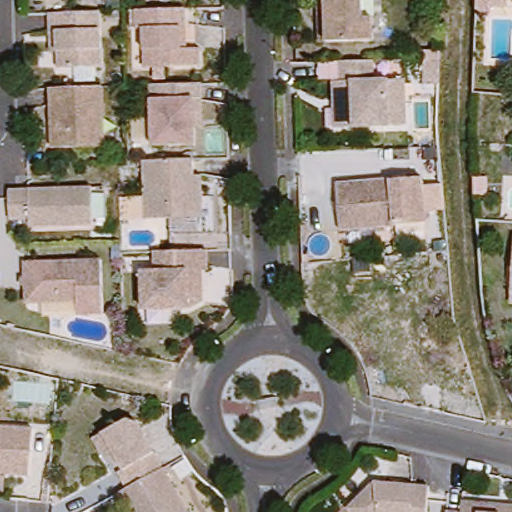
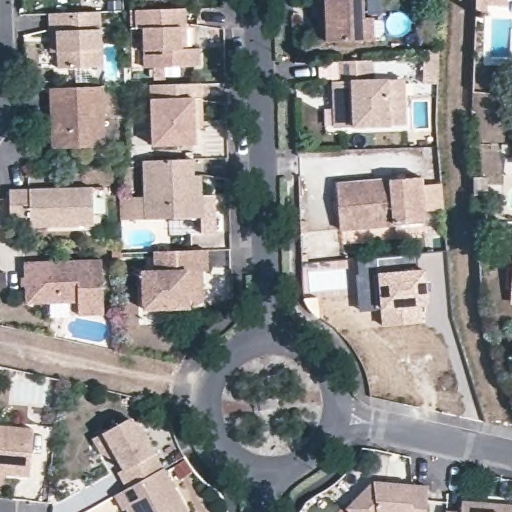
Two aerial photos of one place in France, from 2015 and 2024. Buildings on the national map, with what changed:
unchanged [(319,0),(364,0),(365,17),(389,16),(389,38),(331,41),(321,42),(319,0)]
unchanged [(509,2),(489,1),(489,9),(478,8),(478,0),(509,0),(509,2)]
unchanged [(51,29),(50,9),(108,7),(111,63),(61,66),(61,49),(52,50),(51,29)]
unchanged [(140,27),(148,26),(146,10),(193,8),(194,26),(195,47),(208,47),(209,64),(154,66),(141,67),(140,27)]
unchanged [(422,76),(421,50),(421,42),(437,41),(437,49),(437,76),(422,76)]
unchanged [(319,82),(318,64),(336,64),(371,62),(373,83),(399,82),(401,126),(341,130),(333,130),(331,81),(319,82)]
unchanged [(198,125),(199,141),(156,143),(154,84),(205,82),(206,110),(206,125),(198,125)]
unchanged [(65,125),(64,93),(115,90),(118,150),(75,151),(66,152),(65,125)]
unchanged [(198,158),(199,176),(206,176),(206,188),(208,215),(153,218),(150,161),(198,158)]
unchanged [(427,170),(433,215),(349,225),(343,181),(427,170)]
unchanged [(38,213),(16,213),(15,185),(97,182),(98,221),(39,223),(38,213)]
unchanged [(213,265),(207,266),(208,278),(208,295),(195,304),(150,306),(148,268),(161,268),(160,248),(211,245),(213,265)]
unchanged [(109,306),(84,306),(83,293),(31,295),(31,269),(30,254),(36,254),(108,252),(109,306)]
new [(380,309),(359,311),(356,275),(359,274),(356,258),(417,253),(419,268),(426,267),(429,305),(420,306),(422,322),(381,325),(380,309)]
unchanged [(36,471),(0,468),(0,421),(40,425),(36,471)]
unchanged [(100,457),(91,441),(101,436),(123,423),(136,427),(161,473),(124,493),(115,477),(121,474),(116,463),(100,457)]
unchanged [(124,512),(119,512),(112,499),(124,493),(161,473),(183,512),(127,512),(126,511),(124,512)]
unchanged [(353,512),(376,486),(429,490),(428,512),(353,512)]
unchanged [(486,506),(506,508),(512,509),(512,512),(467,512),(468,504),(486,506)]

